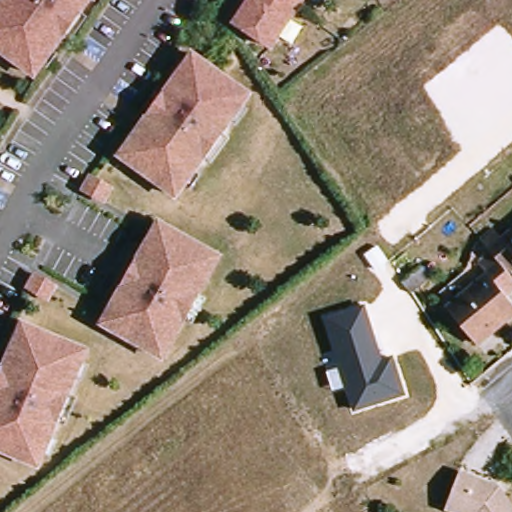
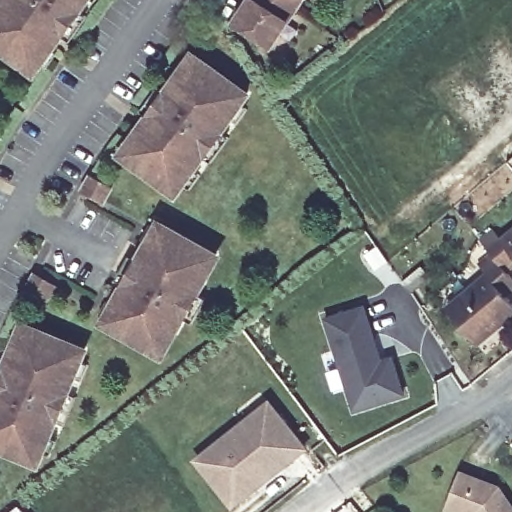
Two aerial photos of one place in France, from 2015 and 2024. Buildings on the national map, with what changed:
unchanged [(0,47),(0,0),(85,0),(79,7),(86,12),(68,37),(61,32),(53,43),(51,41),(49,43),(57,49),(46,63),(39,58),(31,69),(0,47)]
unchanged [(271,46),(233,22),(248,0),(301,0),(271,46)]
unchanged [(174,195),(121,157),(129,146),(121,141),(132,126),(139,131),(141,129),(138,127),(146,116),(139,111),(157,86),(164,91),(172,80),(174,82),(176,79),(169,74),(179,59),(187,65),(194,54),(248,92),(240,103),(248,108),(237,123),(230,117),(228,119),(229,120),(222,131),(229,136),(220,149),(210,163),(202,158),(195,168),(194,167),(192,169),(200,175),(189,189),(182,184),(174,195)]
unchanged [(116,186),(107,201),(80,186),(89,171),(116,186)]
unchanged [(183,332),(180,331),(165,356),(108,324),(113,317),(105,312),(113,296),(122,301),(123,299),(120,297),(126,286),(119,282),(134,254),(142,258),(148,247),(151,248),(152,246),(144,242),(153,226),(161,230),(165,223),(222,254),(208,281),(211,282),(204,295),(212,299),(198,324),(189,320),(183,332)]
unchanged [(489,242),(501,231),(511,242),(512,242),(512,269),(498,253),(489,242)]
unchanged [(512,269),(512,322),(503,329),(500,325),(481,341),(455,310),(497,275),(487,262),(498,253),(512,269)]
unchanged [(59,285),(51,300),(23,285),(33,268),(59,285)]
unchanged [(383,361),(394,356),(406,395),(352,412),(324,319),(366,305),(383,361)]
unchanged [(0,446),(0,361),(3,362),(8,350),(11,351),(12,348),(4,345),(11,328),(19,332),(24,319),(85,344),(80,356),(88,360),(81,376),(73,373),(72,375),(73,376),(68,388),(77,391),(64,422),(56,418),(51,430),(49,430),(48,432),(57,435),(50,452),(41,449),(36,461),(0,446)]
new [(191,460),(268,399),(309,450),(231,510),(191,460)]
unchanged [(463,470),(502,485),(508,494),(512,500),(512,512),(464,512),(449,506),(463,470)]
new [(24,512),(7,512),(17,503),(24,512)]

